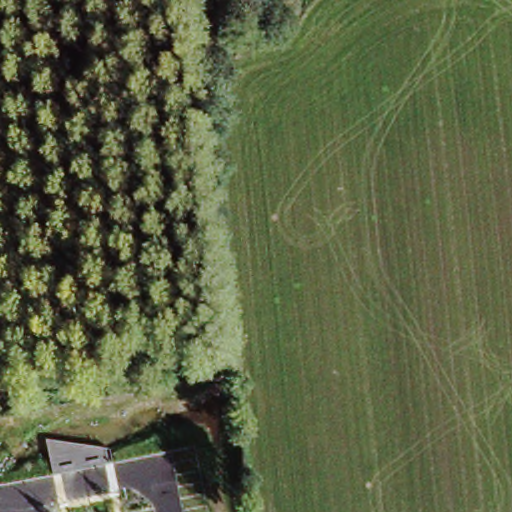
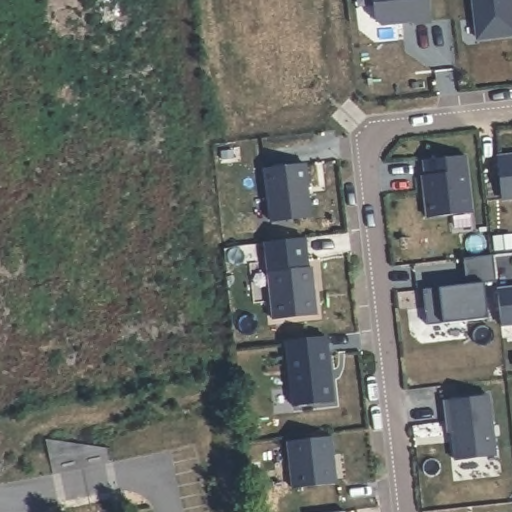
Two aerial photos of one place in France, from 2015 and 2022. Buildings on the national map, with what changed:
new [(429,21),(413,23),(413,20),(379,24),(374,20),(371,0),(427,0),(429,21)]
new [(512,16),(512,34),(478,37),(474,0),(510,0),(512,16)]
new [(512,151),(512,196),(501,197),(496,152),(512,151)]
new [(423,174),(421,159),(463,155),(469,212),(424,217),(419,175),(423,174)]
new [(302,165),(304,182),(307,215),(266,220),(259,170),(302,165)]
new [(301,237),(304,267),(309,267),(311,296),(266,302),(260,242),(301,237)]
new [(464,283),(461,257),(491,254),(494,281),(477,283),(481,318),(420,325),(416,289),(464,283)]
new [(512,287),(512,323),(499,325),(494,289),(512,287)]
new [(324,336),(331,401),(290,406),(282,340),(324,336)]
new [(486,396),(493,456),(453,460),(449,432),(446,433),(442,401),(486,396)]
new [(329,436),(334,482),(291,488),(285,441),(329,436)]
new [(342,512),(324,512),(342,510),(342,512)]

